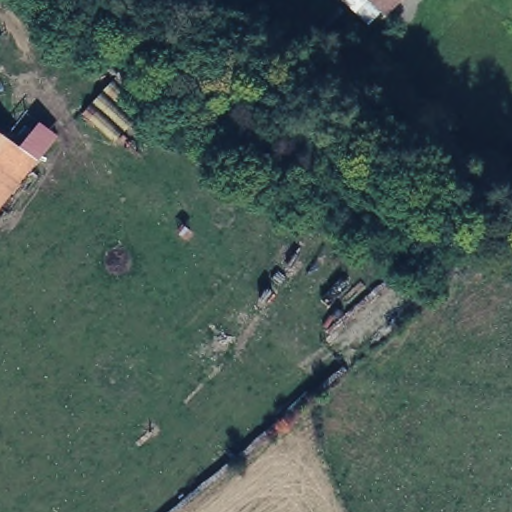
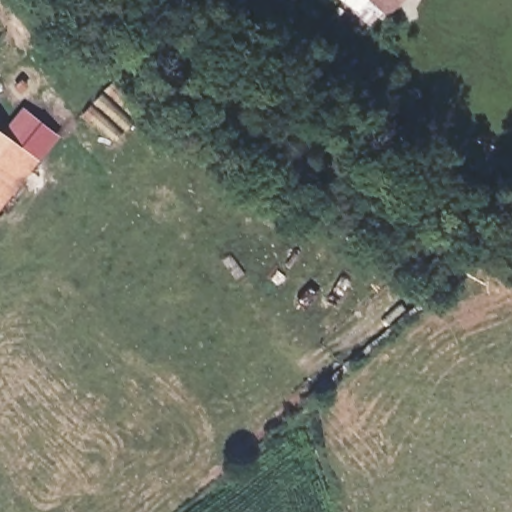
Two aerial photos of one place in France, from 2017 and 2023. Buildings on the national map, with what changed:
unchanged [(339,3),(343,0),(397,0),(369,30),(339,3)]
unchanged [(41,155),(3,200),(0,198),(0,125),(41,155)]

